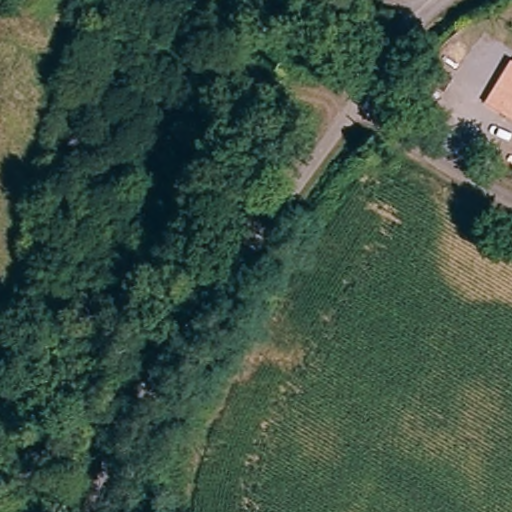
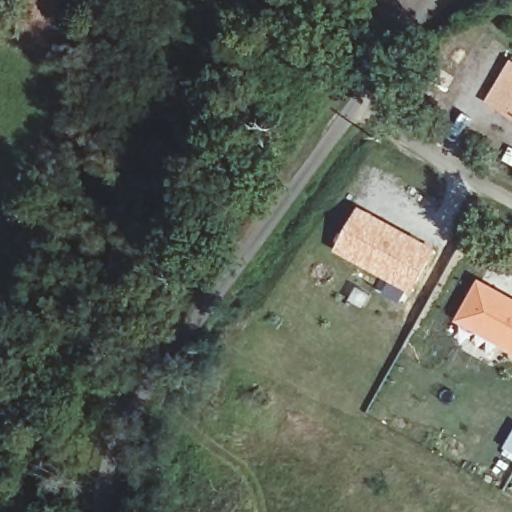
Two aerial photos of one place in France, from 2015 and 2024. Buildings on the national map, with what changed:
unchanged [(503,79),(509,69),(512,70),(512,122),(486,108),(503,79)]
unchanged [(419,81),(431,92),(421,104),(409,94),(419,81)]
new [(360,207),(436,248),(410,294),(406,292),(398,304),(380,293),(386,282),(335,251),(360,207)]
new [(512,297),(512,354),(453,321),(479,278),(512,297)]
new [(512,454),(501,447),(512,428),(512,454)]

